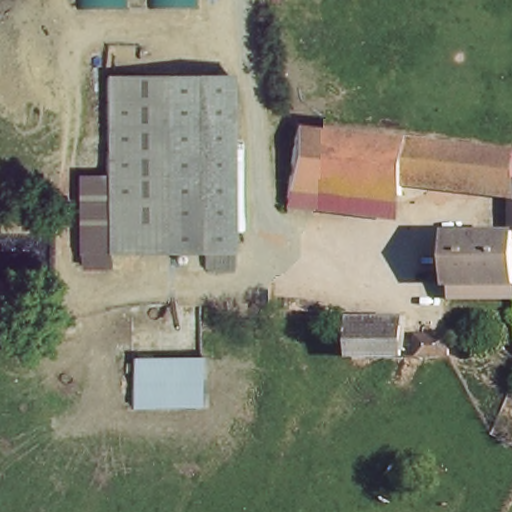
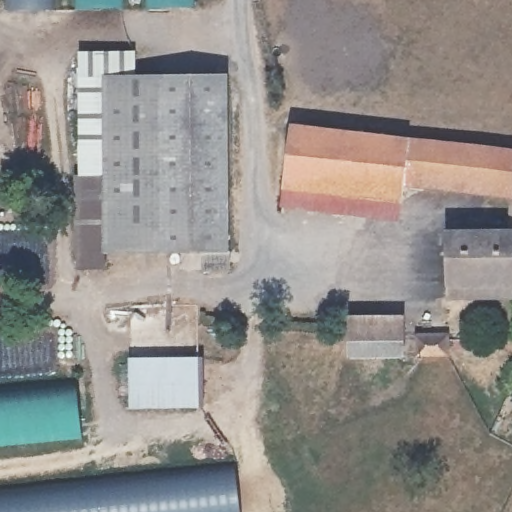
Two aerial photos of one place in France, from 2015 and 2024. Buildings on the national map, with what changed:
unchanged [(73,9),(73,0),(123,0),(123,9),(73,9)]
unchanged [(143,7),(143,0),(194,0),(194,8),(143,7)]
unchanged [(106,80),(143,80),(230,79),(230,272),(204,272),(203,252),(108,254),(108,180),(106,80)]
unchanged [(404,185),(402,202),(288,190),(294,135),(512,160),(512,197),(404,185)]
unchanged [(108,180),(108,254),(108,273),(78,274),(78,180),(108,180)]
unchanged [(288,190),(402,202),(400,224),(285,210),(288,190)]
unchanged [(454,303),(454,291),(450,291),(449,239),(512,238),(512,302),(454,303)]
unchanged [(356,357),(357,326),(357,317),(406,317),(406,327),(406,356),(356,357)]
unchanged [(422,355),(423,336),(454,336),(454,356),(422,355)]
unchanged [(133,414),(133,365),(201,365),(200,412),(133,414)]
new [(83,436),(0,445),(0,387),(76,380),(83,436)]
new [(234,462),(239,512),(0,512),(0,488),(54,480),(234,462)]

